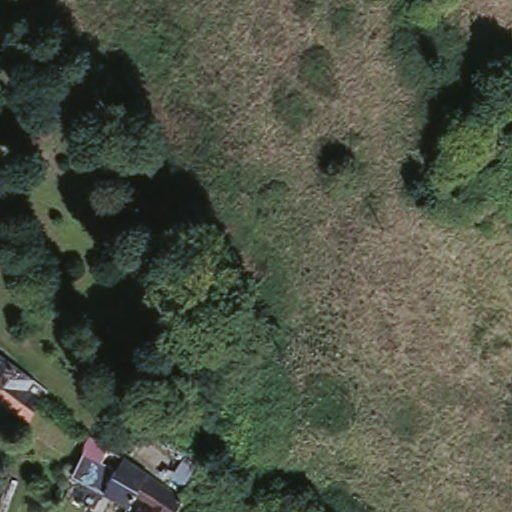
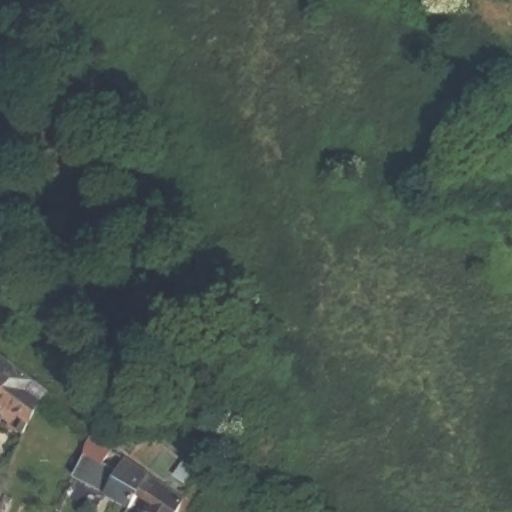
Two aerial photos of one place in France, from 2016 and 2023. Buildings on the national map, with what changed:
unchanged [(0,362),(0,354),(5,357),(0,362)]
unchanged [(49,390),(41,401),(26,434),(19,429),(22,417),(0,401),(0,362),(5,357),(49,390)]
unchanged [(114,449),(105,463),(117,470),(105,491),(75,478),(92,435),(107,445),(114,449)]
unchanged [(149,473),(137,492),(128,506),(105,491),(117,470),(126,458),(149,473)]
unchanged [(137,492),(149,473),(185,497),(178,512),(139,512),(147,498),(137,492)]

